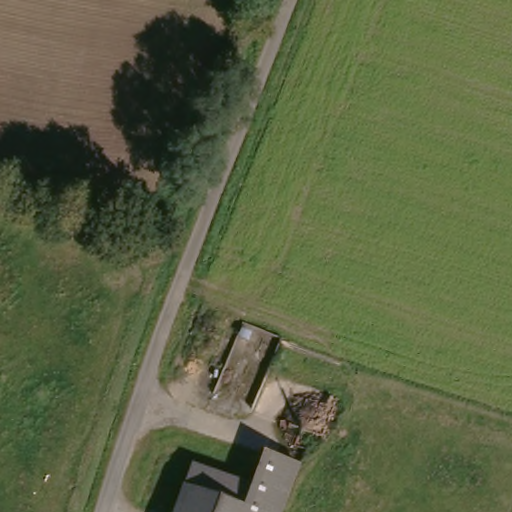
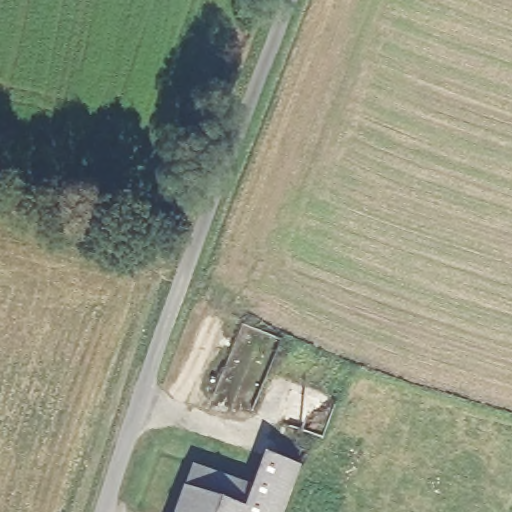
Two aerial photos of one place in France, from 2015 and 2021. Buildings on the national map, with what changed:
unchanged [(305,462),(287,512),(247,512),(257,483),(270,448),(305,462)]
unchanged [(247,512),(179,512),(196,461),(257,483),(247,512)]

